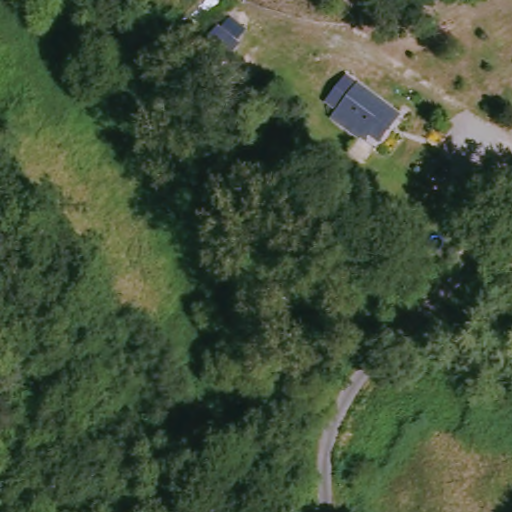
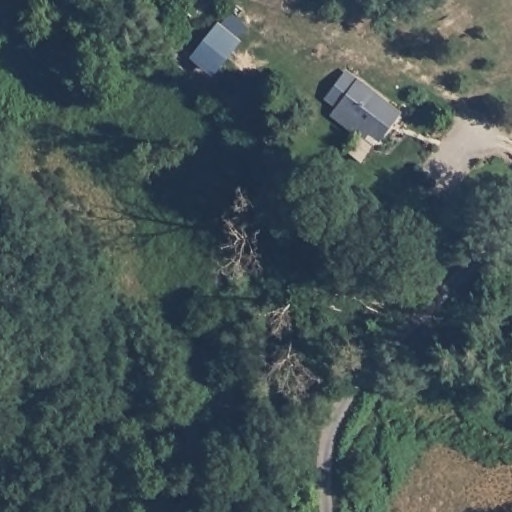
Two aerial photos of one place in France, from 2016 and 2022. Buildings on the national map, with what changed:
new [(237,41),(211,72),(195,59),(218,28),(237,41)]
unchanged [(265,67),(240,98),(223,85),(246,54),(265,67)]
unchanged [(407,116),(387,140),(375,130),(370,137),(342,114),(348,107),(338,99),(358,75),(407,116)]

